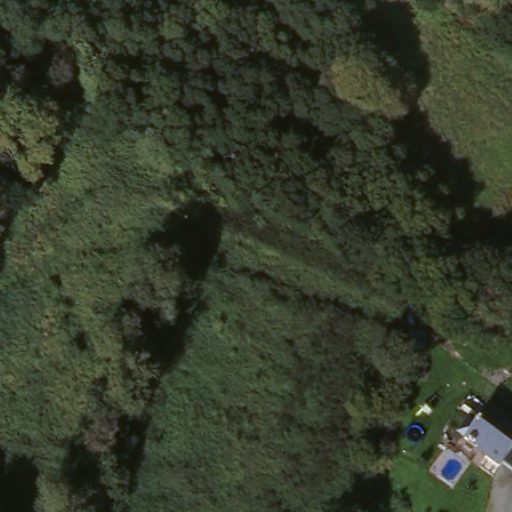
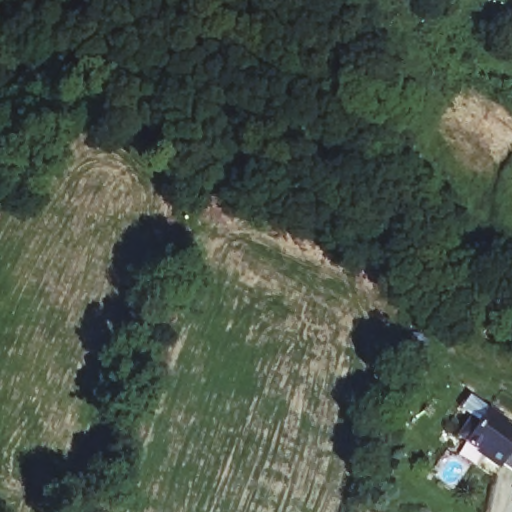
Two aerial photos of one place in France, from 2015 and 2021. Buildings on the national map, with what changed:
unchanged [(512,451),(502,466),(461,434),(485,407),(512,427),(512,451)]

